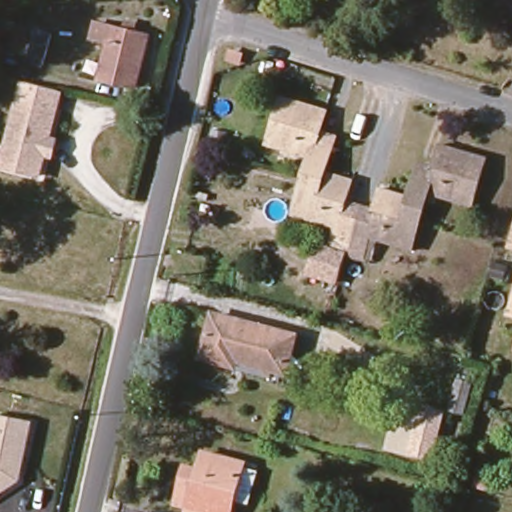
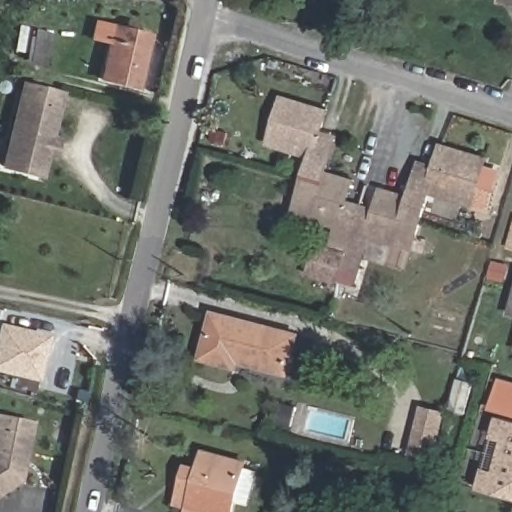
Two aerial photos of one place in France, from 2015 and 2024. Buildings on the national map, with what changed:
unchanged [(104,82),(112,47),(94,43),(100,22),(127,30),(128,26),(140,27),(141,33),(154,37),(139,90),(104,82)]
unchanged [(45,64),(23,60),(29,28),(52,31),(45,64)]
unchanged [(4,161),(20,91),(58,100),(42,170),(4,161)]
unchanged [(328,175),(326,183),(307,179),(310,163),(268,153),(278,114),(289,116),(292,107),(325,116),(319,140),(335,145),(328,175)]
unchanged [(434,169),(440,143),(469,151),(468,162),(483,165),(472,205),(427,193),(424,212),(405,207),(409,192),(416,166),(434,169)]
unchanged [(351,254),(335,250),(339,230),(297,217),(305,186),(307,179),(326,183),(328,175),(354,181),(348,205),(363,208),(351,254)]
unchanged [(377,211),(383,187),(409,192),(405,207),(424,212),(422,219),(414,246),(374,237),(370,258),(351,254),(363,208),(377,211)]
unchanged [(168,283),(171,271),(185,275),(181,287),(168,283)]
unchanged [(284,370),(238,358),(234,367),(201,358),(212,315),(292,336),(284,370)]
new [(35,378),(0,370),(0,326),(44,337),(35,378)]
new [(488,410),(494,377),(512,381),(512,416),(488,410)]
new [(456,380),(471,383),(462,415),(447,411),(456,380)]
demolished [(461,397),(454,432),(436,428),(443,393),(461,397)]
unchanged [(439,415),(431,449),(413,446),(421,411),(439,415)]
unchanged [(22,482),(0,495),(0,414),(34,421),(22,482)]
new [(483,467),(494,470),(501,442),(490,439),(496,415),(512,419),(512,497),(477,488),(483,467)]
unchanged [(237,471),(236,473),(250,477),(241,511),(228,507),(227,512),(184,512),(175,509),(184,473),(193,476),(197,461),(237,471)]

